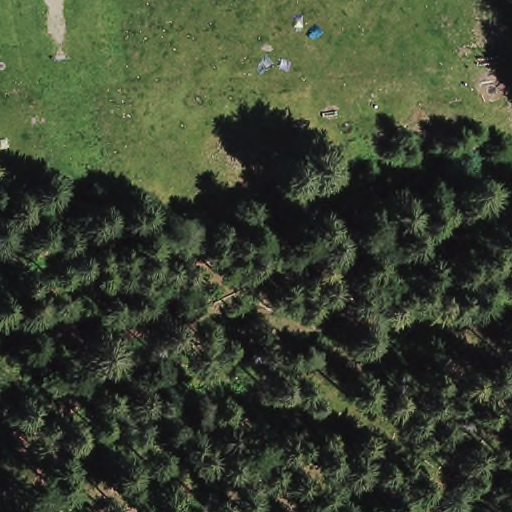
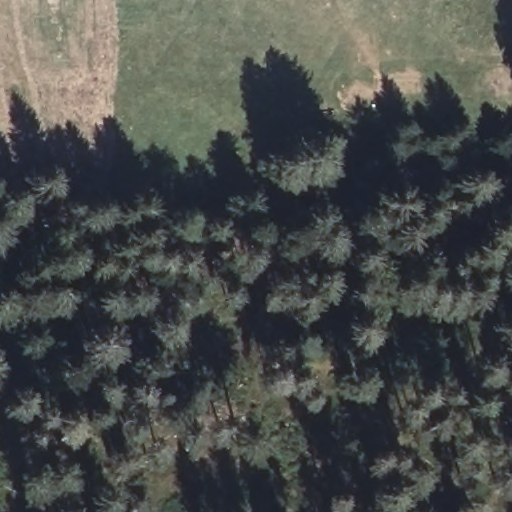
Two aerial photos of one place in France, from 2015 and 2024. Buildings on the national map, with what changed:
[]

